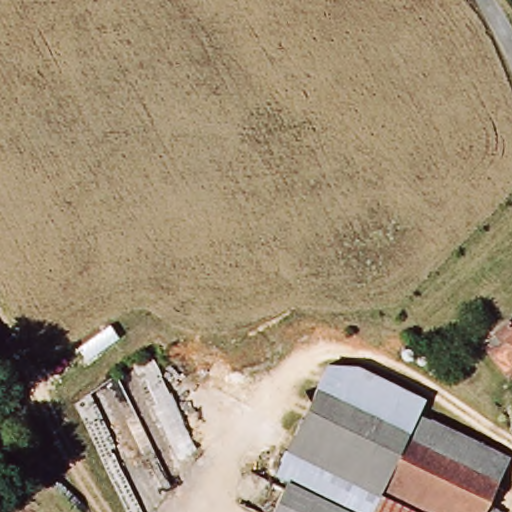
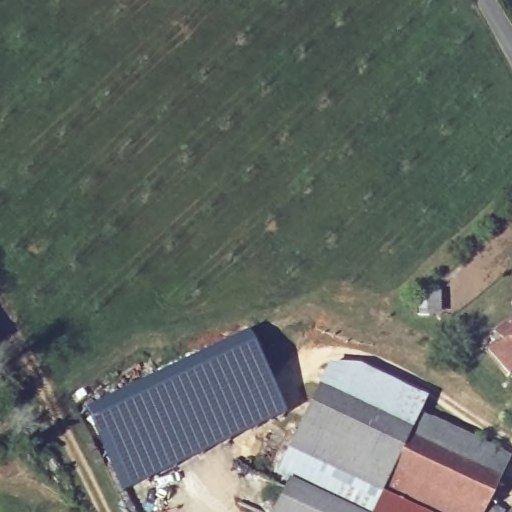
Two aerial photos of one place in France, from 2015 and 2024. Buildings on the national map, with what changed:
new [(244,333),(283,416),(156,479),(121,495),(79,412),(244,333)]
unchanged [(512,342),(512,382),(507,385),(487,361),(501,350),(512,342)]
unchanged [(417,415),(405,437),(498,486),(484,512),(416,512),(381,492),(379,496),(290,448),(331,371),(356,368),(424,404),(417,415)]
unchanged [(511,461),(498,486),(405,437),(417,415),(511,461)]
unchanged [(291,478),(278,470),(290,448),(379,496),(381,492),(416,512),(273,512),(291,478)]

